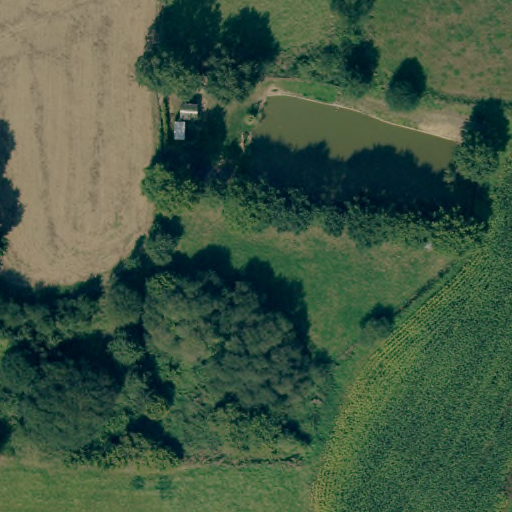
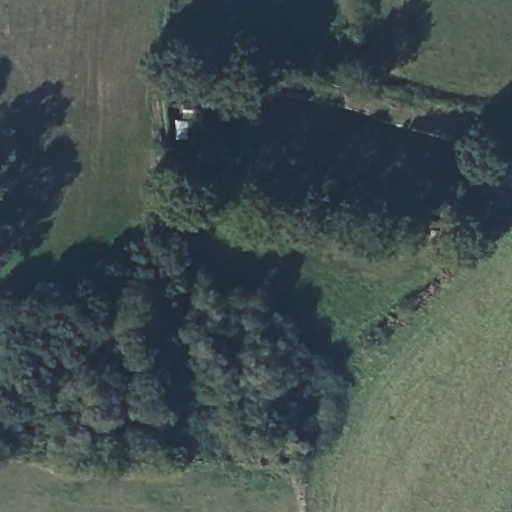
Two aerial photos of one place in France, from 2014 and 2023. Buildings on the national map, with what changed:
[]

